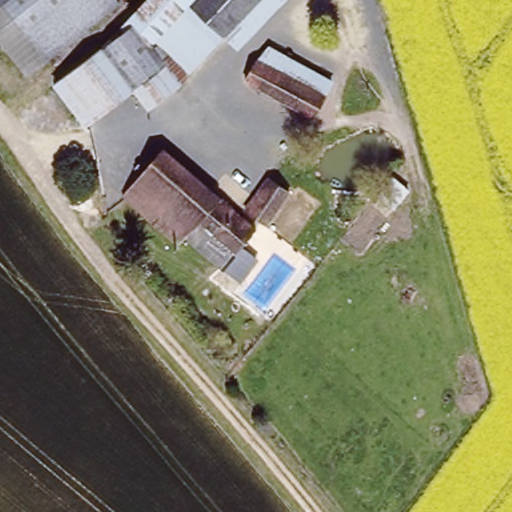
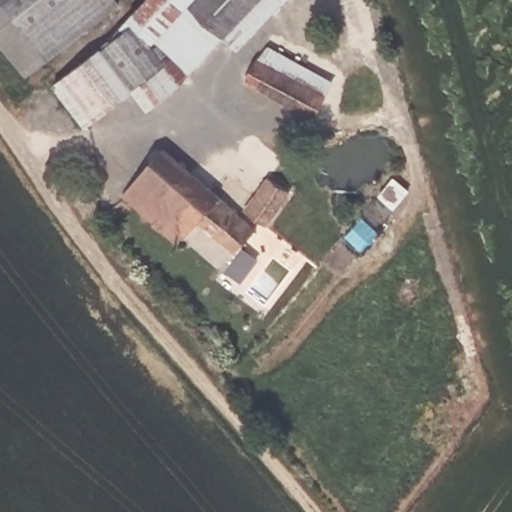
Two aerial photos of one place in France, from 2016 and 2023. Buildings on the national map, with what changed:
unchanged [(7,40),(0,32),(0,0),(116,0),(45,57),(29,69),(7,40)]
unchanged [(59,74),(100,44),(141,0),(284,0),(240,48),(227,36),(184,80),(150,107),(134,88),(88,124),(52,79),(59,74)]
unchanged [(257,56),(269,45),(335,80),(326,95),(257,56)]
unchanged [(316,112),(247,74),(257,56),(326,95),(316,112)]
unchanged [(169,146),(258,227),(227,264),(190,231),(182,240),(127,190),(169,146)]
unchanged [(273,174),(294,186),(272,222),(252,210),(273,174)]

